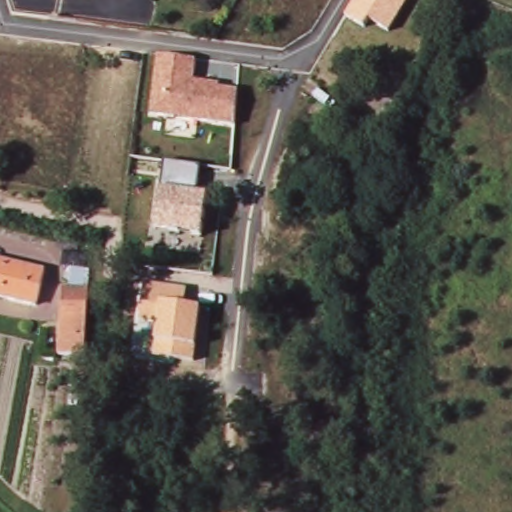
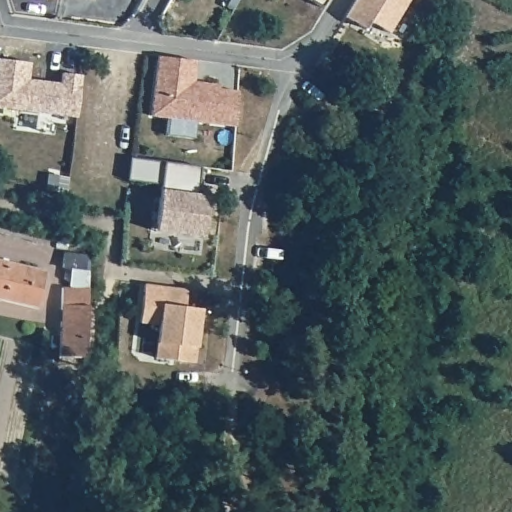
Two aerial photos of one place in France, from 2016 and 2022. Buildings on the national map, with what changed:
new [(313,0),(333,0),(327,9),(313,0)]
unchanged [(369,22),(365,29),(344,17),(354,0),(409,0),(388,34),(369,22)]
unchanged [(196,62),(195,82),(219,85),(219,89),(239,91),(237,109),(232,109),(230,125),(150,115),(156,56),(196,62)]
new [(34,81),(53,83),(67,85),(69,74),(87,77),(82,119),(0,108),(0,67),(1,59),(36,64),(34,81)]
unchanged [(197,194),(207,195),(202,237),(155,232),(160,189),(164,162),(200,167),(197,194)]
unchanged [(0,302),(0,255),(45,266),(36,308),(0,302)]
unchanged [(186,305),(202,307),(196,365),(153,360),(156,323),(140,321),(145,283),(188,290),(186,305)]
unchanged [(55,356),(55,286),(83,286),(82,294),(80,356),(55,356)]

